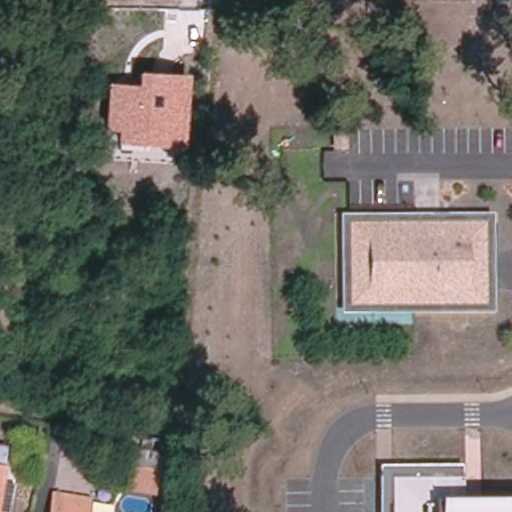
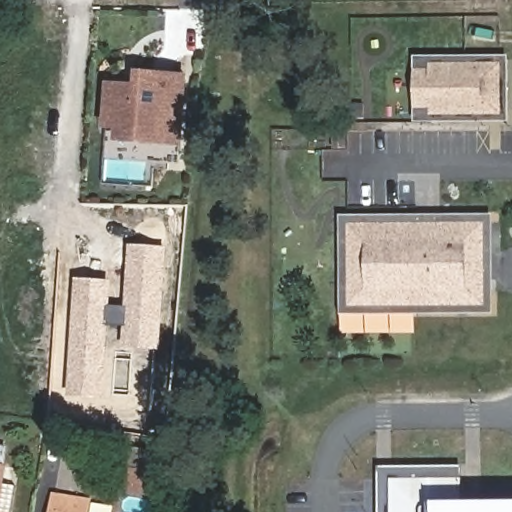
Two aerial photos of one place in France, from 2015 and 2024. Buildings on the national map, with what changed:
new [(413,121),(414,57),(510,55),(510,121),(413,121)]
unchanged [(182,147),(113,142),(114,130),(102,129),(105,82),(134,83),(136,70),(188,72),(182,147)]
unchanged [(494,311),(342,315),(340,215),(493,213),(494,311)]
new [(68,396),(76,277),(113,280),(112,305),(125,306),(131,245),(168,247),(162,350),(124,348),(124,327),(111,326),(105,398),(68,396)]
unchanged [(8,446),(4,468),(0,497),(0,445),(8,446)]
unchanged [(157,475),(154,495),(125,490),(130,460),(131,450),(161,455),(159,465),(157,475)]
unchanged [(512,503),(512,512),(380,512),(380,467),(462,466),(461,503),(512,503)]
unchanged [(89,502),(87,512),(52,512),(55,496),(89,502)]

